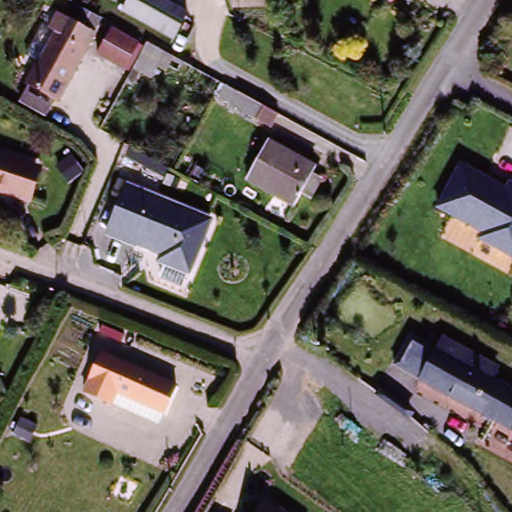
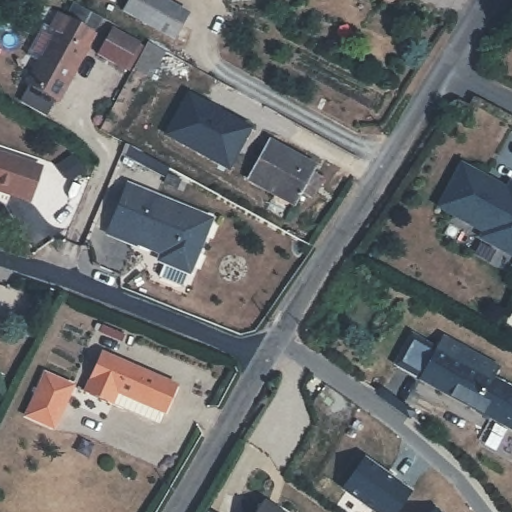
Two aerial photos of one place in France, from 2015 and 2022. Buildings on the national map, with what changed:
unchanged [(131,0),(162,0),(190,15),(175,41),(124,12),(131,0)]
unchanged [(62,8),(91,24),(102,30),(94,43),(66,96),(62,95),(54,110),(27,95),(36,80),(32,78),(44,55),(31,49),(47,19),(55,22),(62,8)]
unchanged [(137,39),(123,65),(100,53),(114,26),(137,39)]
unchanged [(156,71),(139,61),(150,41),(151,41),(176,55),(166,75),(156,71)]
new [(191,91),(251,128),(229,165),(167,132),(191,91)]
unchanged [(223,105),(230,92),(237,96),(263,111),(281,120),(275,132),(223,105)]
unchanged [(307,200),(300,196),(293,207),(245,179),(266,144),(313,170),(308,180),(317,184),(307,200)]
unchanged [(161,165),(169,170),(164,179),(124,157),(124,156),(128,149),(161,165)]
unchanged [(0,195),(0,156),(47,171),(37,206),(0,195)]
unchanged [(485,234),(490,226),(443,201),(468,158),(512,181),(512,248),(485,234)]
unchanged [(211,225),(189,278),(187,277),(182,291),(161,283),(167,269),(159,265),(161,261),(107,240),(127,190),(211,225)]
unchanged [(415,382),(417,378),(406,370),(393,365),(403,345),(416,351),(420,343),(433,350),(438,342),(492,370),(487,380),(512,394),(512,436),(415,382)]
unchanged [(165,420),(158,430),(107,408),(84,398),(111,348),(123,351),(121,366),(140,375),(180,390),(165,420)]
new [(46,375),(74,388),(54,425),(28,415),(46,375)]
new [(364,461),(410,496),(398,512),(371,512),(342,490),(364,461)]
unchanged [(265,498),(284,512),(255,512),(265,498)]

